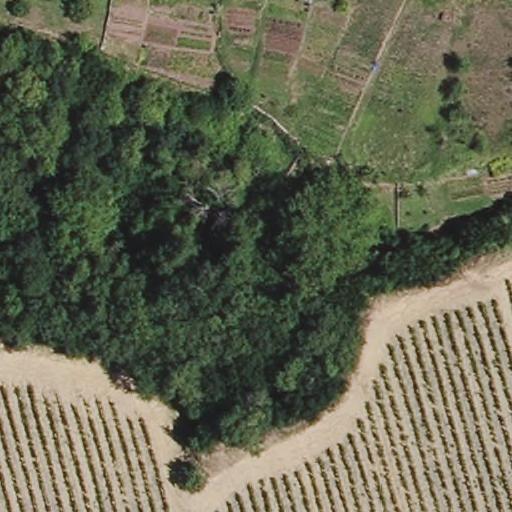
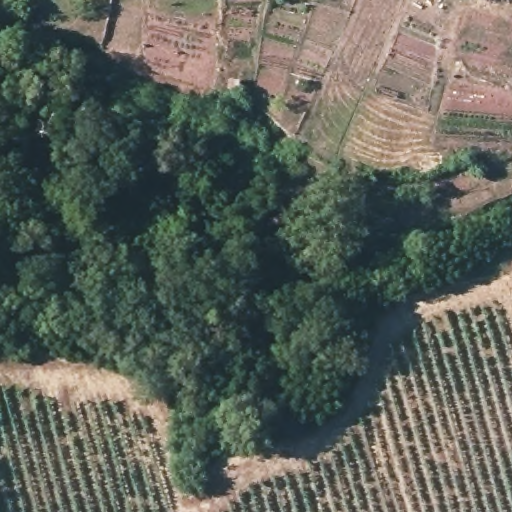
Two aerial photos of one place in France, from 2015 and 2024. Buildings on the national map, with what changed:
unchanged [(335,223),(350,222),(350,241),(332,237),(335,223)]

